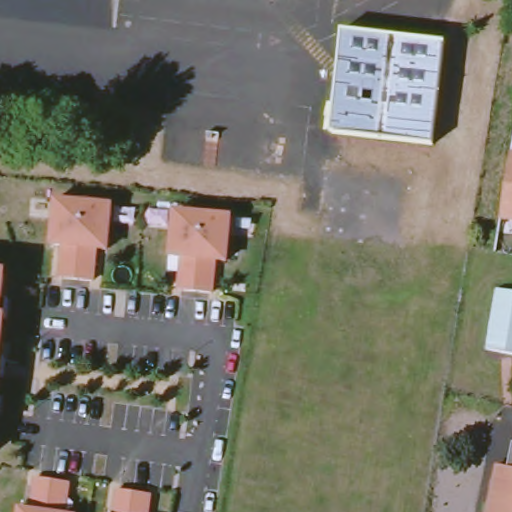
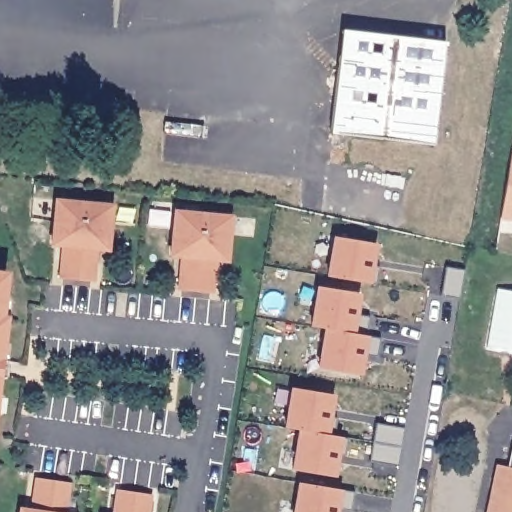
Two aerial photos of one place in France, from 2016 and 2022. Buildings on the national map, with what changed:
unchanged [(331,132),(342,31),(444,42),(434,144),(331,132)]
unchanged [(512,152),(512,220),(499,219),(510,152),(512,152)]
unchanged [(92,209),(120,211),(117,255),(105,255),(102,287),(85,286),(69,284),(72,251),(60,250),(65,206),(92,209)]
unchanged [(206,215),(234,217),(230,261),(219,260),(215,293),(183,290),(185,257),(174,256),(178,212),(206,215)]
new [(373,265),(377,266),(376,284),(328,276),(334,236),(376,243),(373,265)]
unchanged [(0,276),(3,276),(0,302),(0,276)]
new [(357,314),(369,316),(367,336),(380,338),(377,355),(363,354),(360,375),(319,368),(325,329),(312,326),(318,285),(359,293),(357,314)]
unchanged [(512,291),(512,354),(489,350),(497,289),(512,291)]
unchanged [(0,341),(0,320),(2,320),(0,341)]
new [(332,416),(338,417),(337,436),(344,437),(335,477),(290,468),(298,430),(284,427),(291,387),(335,395),(332,416)]
new [(404,427),(399,466),(370,461),(375,423),(404,427)]
unchanged [(505,467),(510,446),(512,447),(512,512),(484,512),(494,465),(505,467)]
unchanged [(69,483),(64,512),(19,512),(20,510),(32,511),(36,479),(52,481),(69,483)]
new [(352,511),(340,508),(339,512),(293,512),(298,482),(342,490),(355,492),(352,511)]
unchanged [(150,495),(147,512),(114,512),(117,490),(133,492),(150,495)]

